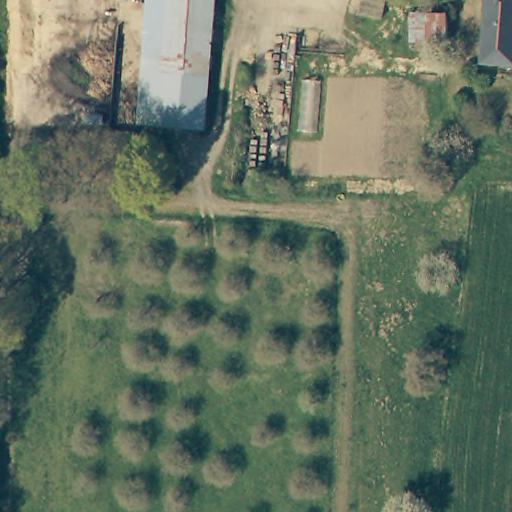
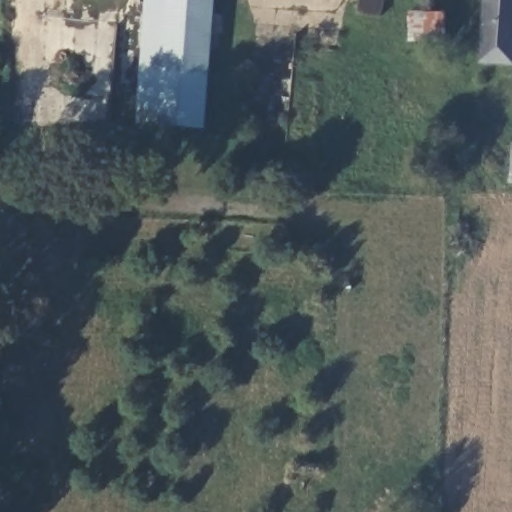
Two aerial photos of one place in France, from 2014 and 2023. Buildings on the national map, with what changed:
unchanged [(142,0),(208,0),(200,129),(144,126),(134,125),(137,75),(142,0)]
unchanged [(352,7),(352,0),(369,0),(368,8),(352,7)]
unchanged [(486,0),(512,0),(512,66),(480,63),(486,0)]
unchanged [(401,24),(402,11),(437,12),(436,41),(417,40),(417,24),(401,24)]

